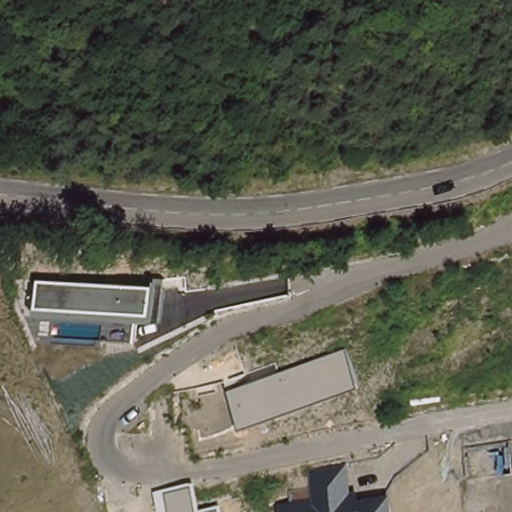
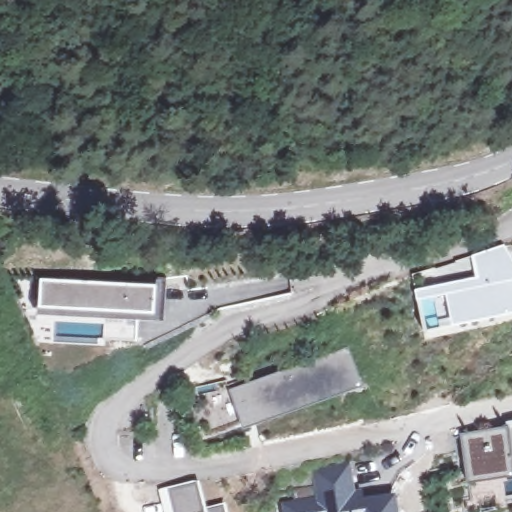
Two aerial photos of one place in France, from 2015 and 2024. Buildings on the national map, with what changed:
new [(438,298),(443,296),(442,291),(457,287),(456,280),(474,276),(469,254),(504,242),(512,255),(512,314),(439,328),(436,315),(442,314),(438,298)]
unchanged [(40,318),(35,312),(38,280),(154,285),(153,278),(164,279),(162,322),(40,318)]
unchanged [(243,430),(229,391),(347,349),(361,386),(243,430)]
new [(507,428),(506,423),(512,423),(512,476),(467,484),(459,434),(507,428)]
unchanged [(294,499),(292,489),(315,487),(313,473),(349,466),(354,493),(361,492),(363,499),(395,493),(398,512),(281,512),(279,502),(294,499)]
unchanged [(197,482),(204,509),(223,504),(226,512),(164,512),(158,491),(197,482)]

